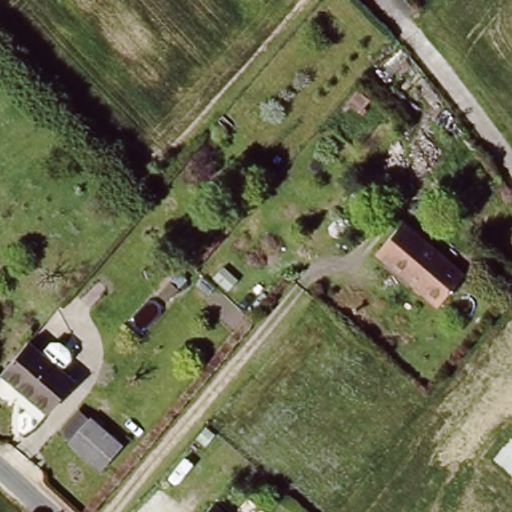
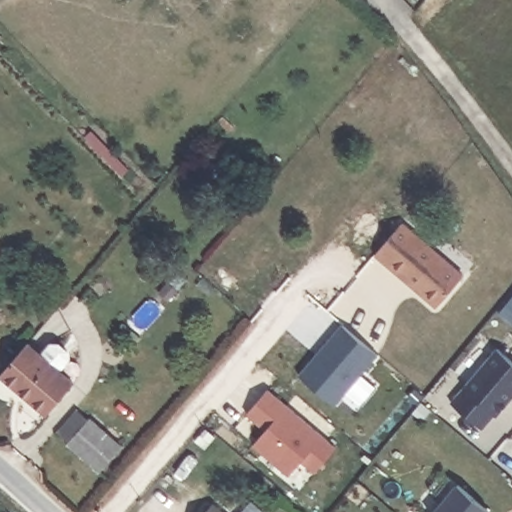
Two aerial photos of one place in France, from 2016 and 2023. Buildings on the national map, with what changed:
unchanged [(379,256),(405,225),(466,278),(440,308),(379,256)]
new [(343,323),(379,355),(336,406),(300,375),(343,323)]
unchanged [(52,367),(25,398),(0,376),(0,374),(25,344),(52,367)]
new [(498,347),(512,359),(512,397),(496,416),(494,415),(482,428),(451,403),(498,347)]
unchanged [(52,367),(71,383),(45,415),(25,398),(52,367)]
new [(336,446),(314,474),(301,461),(290,476),(251,444),(265,430),(247,413),(270,389),(336,446)]
unchanged [(99,475),(66,446),(88,421),(120,449),(99,475)]
new [(490,511),(489,512),(435,512),(458,485),(490,511)]
unchanged [(228,512),(202,512),(212,500),(228,512)]

